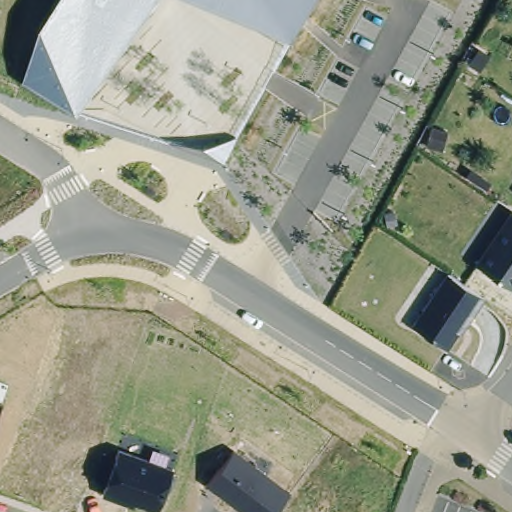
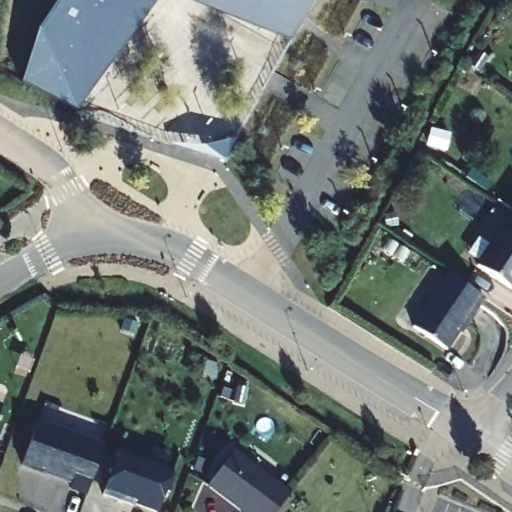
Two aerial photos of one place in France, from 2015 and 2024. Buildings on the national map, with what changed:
unchanged [(18,78),(33,30),(54,0),(153,0),(70,111),(18,78)]
unchanged [(187,0),(309,0),(287,40),(187,0)]
unchanged [(480,269),(512,220),(512,291),(480,269)]
unchanged [(450,277),(464,286),(486,301),(468,327),(466,325),(448,352),(415,330),(450,277)]
new [(86,495),(70,489),(71,485),(22,467),(39,419),(103,443),(86,495)]
unchanged [(155,511),(98,490),(112,450),(167,468),(155,511)]
unchanged [(204,478),(228,450),(285,493),(273,512),(244,512),(204,478)]

